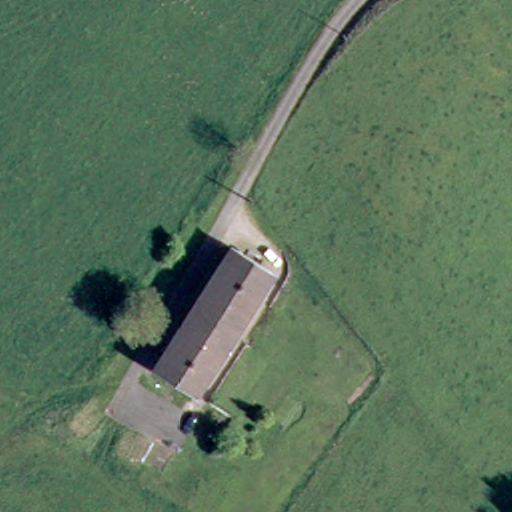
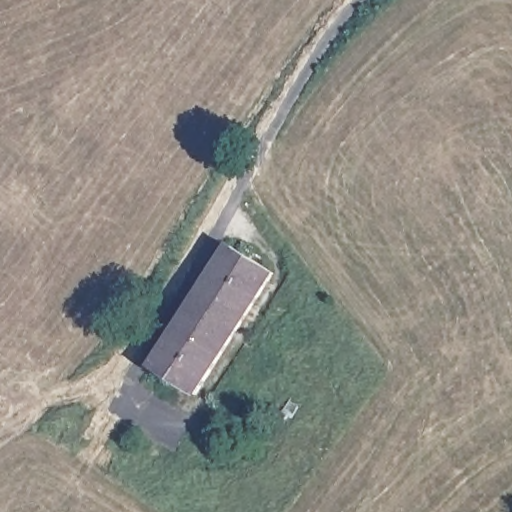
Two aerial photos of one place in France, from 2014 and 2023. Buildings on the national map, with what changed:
unchanged [(159,367),(235,247),(276,274),(202,393),(159,367)]
unchanged [(66,406),(88,404),(89,412),(66,413),(66,406)]
unchanged [(200,439),(221,405),(239,416),(215,455),(198,444),(200,439)]

